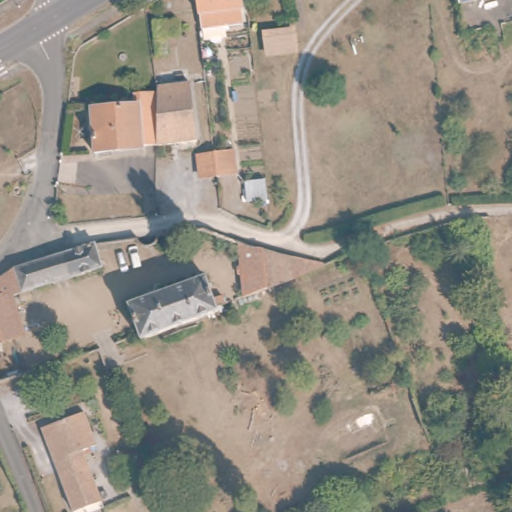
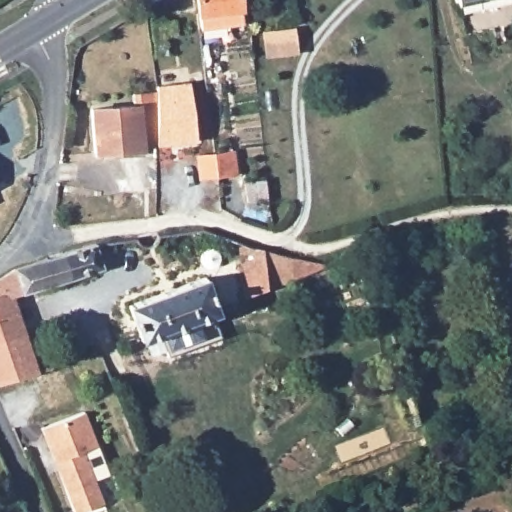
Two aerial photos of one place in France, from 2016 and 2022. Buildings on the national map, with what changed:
unchanged [(247,22),(206,26),(206,22),(203,0),(245,0),(247,17),(247,22)]
unchanged [(512,8),(461,18),(458,0),(512,0),(512,8)]
unchanged [(196,82),(202,140),(163,145),(163,96),(163,86),(196,82)]
unchanged [(137,109),(137,97),(163,96),(163,145),(162,148),(140,150),(140,154),(99,156),(97,112),(137,109)]
unchanged [(203,151),(219,149),(240,147),(242,174),(222,176),(206,177),(203,151)]
unchanged [(267,178),(270,198),(251,201),(249,181),(267,178)]
unchanged [(231,195),(232,202),(225,203),(224,196),(231,195)]
unchanged [(322,263),(321,267),(298,276),(258,291),(261,295),(255,297),(252,294),(245,297),(237,242),(297,257),(322,263)]
unchanged [(17,271),(100,247),(107,268),(15,298),(26,332),(0,340),(0,280),(17,271)]
unchanged [(210,277),(218,297),(228,292),(232,303),(235,307),(226,311),(225,308),(205,317),(207,323),(167,339),(164,332),(145,340),(142,332),(132,306),(210,277)]
new [(38,371),(0,382),(0,349),(1,349),(0,346),(0,340),(26,332),(38,371)]
unchanged [(1,349),(0,349),(0,346),(1,349)]
unchanged [(93,447),(82,451),(101,503),(74,512),(69,512),(40,427),(62,421),(81,415),(93,447)]

